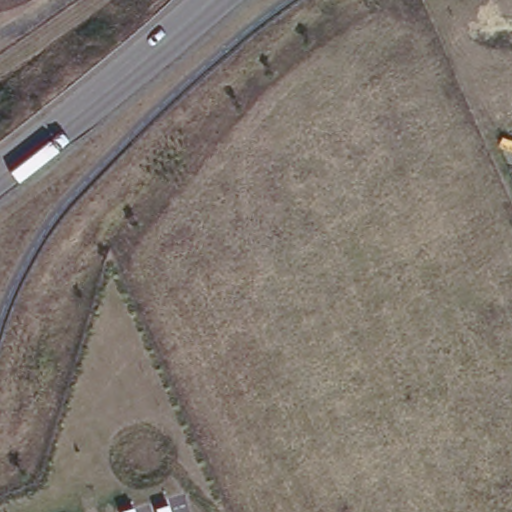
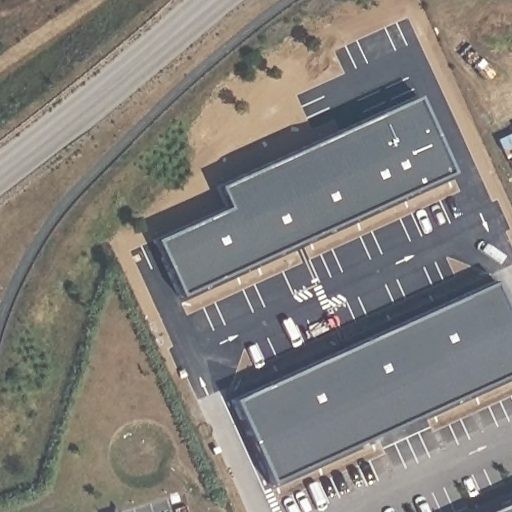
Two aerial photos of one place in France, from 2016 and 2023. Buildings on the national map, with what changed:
new [(155,238),(225,208),(215,186),(414,97),(449,173),(179,295),(155,238)]
new [(512,151),(512,158),(509,152),(512,151)]
new [(494,279),(512,316),(512,372),(270,484),(232,398),(494,279)]
new [(489,512),(512,501),(512,512),(489,512)]

